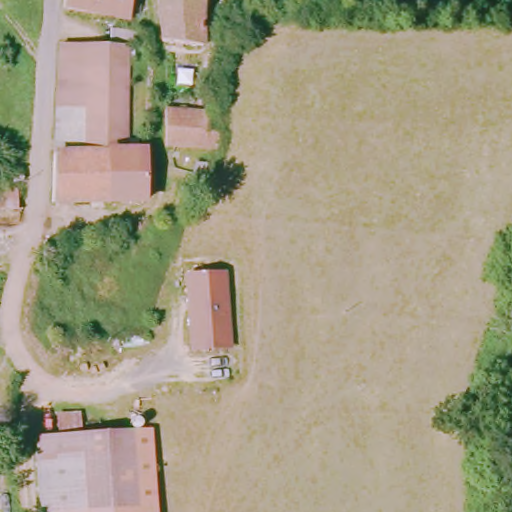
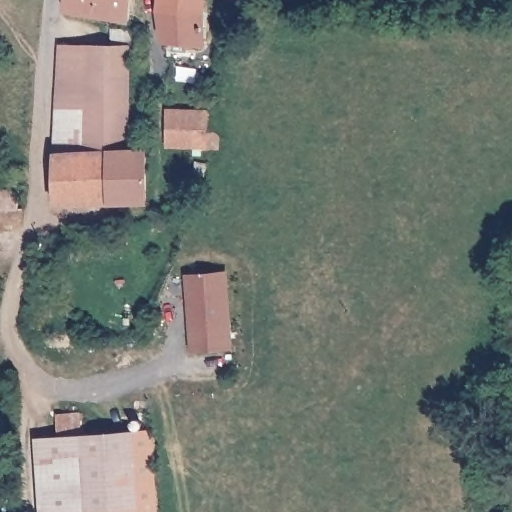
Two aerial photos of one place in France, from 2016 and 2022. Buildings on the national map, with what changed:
unchanged [(122,26),(59,9),(61,0),(127,0),(122,26)]
unchanged [(156,19),(158,0),(198,0),(196,15),(199,48),(163,48),(156,19)]
unchanged [(222,4),(223,0),(239,0),(239,4),(226,4),(222,4)]
unchanged [(121,43),(120,149),(142,151),(140,203),(51,205),(52,127),(57,40),(121,43)]
unchanged [(164,149),(164,131),(164,115),(199,114),(200,129),(213,129),(211,148),(164,149)]
unchanged [(231,347),(194,349),(189,276),(226,273),(231,347)]
unchanged [(36,512),(30,442),(55,441),(53,419),(75,418),(76,439),(127,435),(133,512),(36,512)]
unchanged [(153,512),(133,512),(127,435),(148,434),(153,512)]

